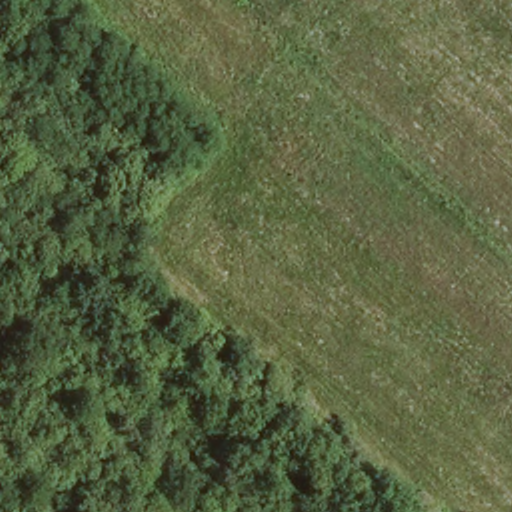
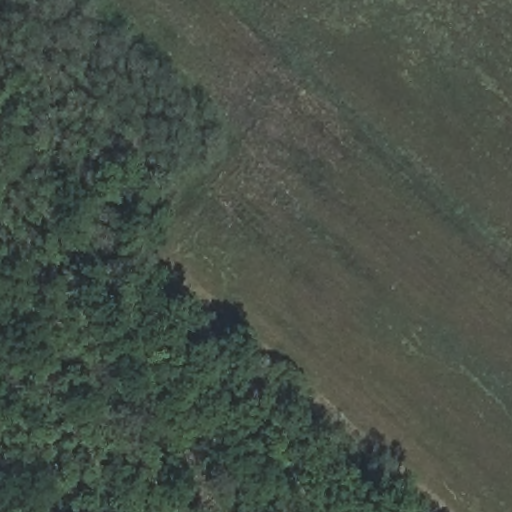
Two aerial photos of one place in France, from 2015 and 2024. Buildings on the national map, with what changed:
[]

